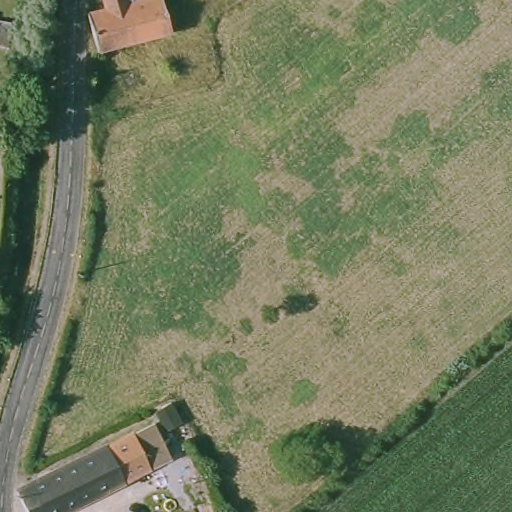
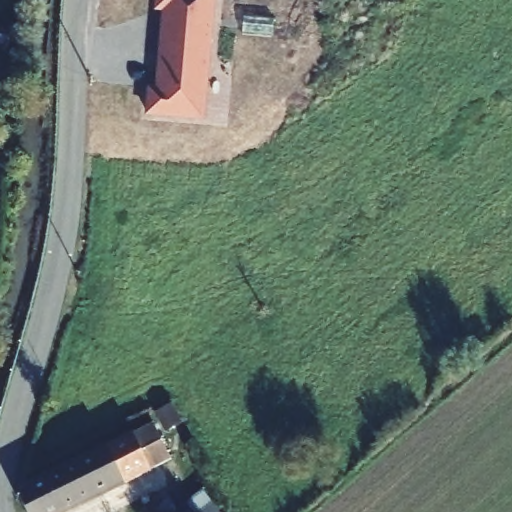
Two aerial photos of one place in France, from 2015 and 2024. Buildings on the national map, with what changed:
demolished [(171,32),(101,57),(88,19),(103,12),(99,0),(161,0),(171,32)]
new [(151,110),(153,86),(160,86),(161,69),(163,67),(164,66),(165,54),(163,54),(163,51),(166,10),(158,10),(159,0),(212,0),(204,114),(151,110)]
unchanged [(96,456),(129,441),(148,433),(167,467),(158,471),(63,512),(13,512),(6,493),(96,456)]
new [(208,487),(224,512),(193,512),(186,501),(208,487)]

